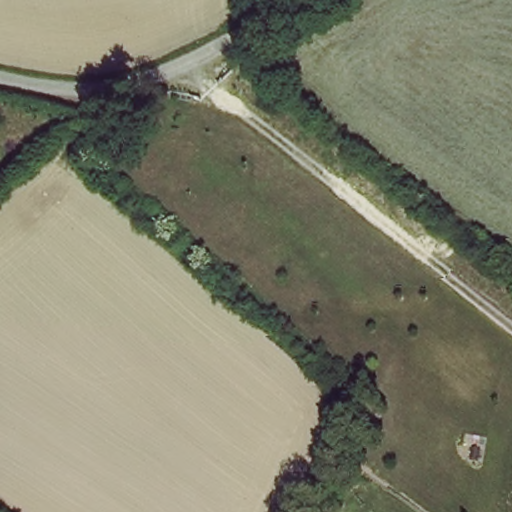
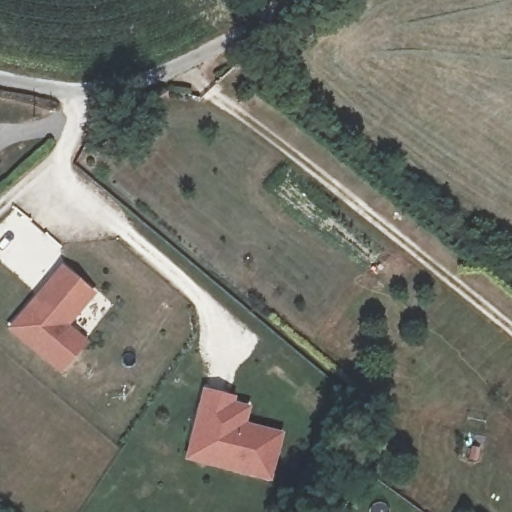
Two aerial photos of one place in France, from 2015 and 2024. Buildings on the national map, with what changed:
new [(61,267),(91,295),(65,325),(85,344),(59,375),(7,327),(61,267)]
new [(202,391),(236,397),(235,406),(250,409),(246,424),(282,433),(271,483),(185,463),(202,391)]

